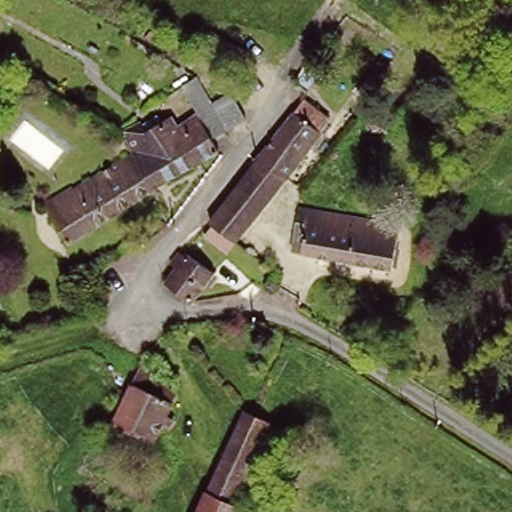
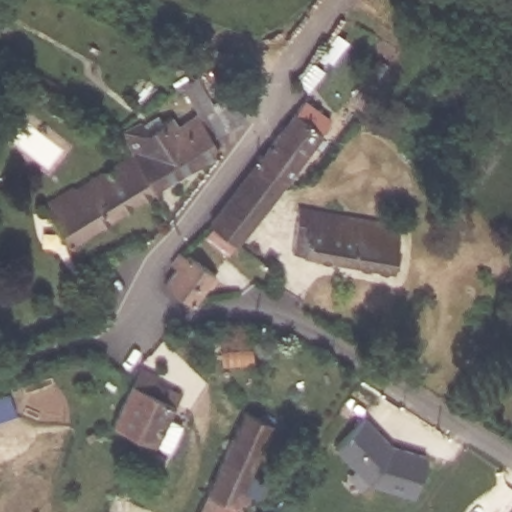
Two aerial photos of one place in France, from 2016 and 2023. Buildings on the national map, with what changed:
unchanged [(425,32),(471,59),(461,77),(416,51),(425,32)]
unchanged [(140,148),(127,127),(145,117),(152,129),(167,121),(166,118),(175,113),(179,121),(201,109),(187,81),(202,73),(219,105),(240,93),(252,115),(215,135),(223,149),(158,183),(140,148)]
unchanged [(268,167),(260,161),(295,114),(304,102),(327,119),(318,131),(283,179),(268,167)]
unchanged [(158,183),(160,185),(73,240),(48,201),(78,182),(80,186),(140,148),(158,183)]
unchanged [(268,167),(283,179),(235,243),(227,236),(212,224),(260,161),(268,167)]
unchanged [(301,243),(308,208),(367,220),(403,226),(401,235),(400,243),(395,269),(309,252),(300,250),(301,243)]
unchanged [(170,279),(177,267),(172,263),(180,251),(189,257),(193,252),(220,272),(206,291),(201,286),(195,297),(170,279)]
unchanged [(153,373),(150,380),(174,390),(152,441),(111,423),(137,367),(153,373)]
unchanged [(210,494),(246,410),(255,414),(275,423),(245,490),(256,495),(249,511),(245,509),(210,494)]
new [(414,495),(370,483),(336,445),(366,416),(390,442),(426,454),(414,495)]
unchanged [(202,512),(210,494),(245,509),(244,512),(202,512)]

